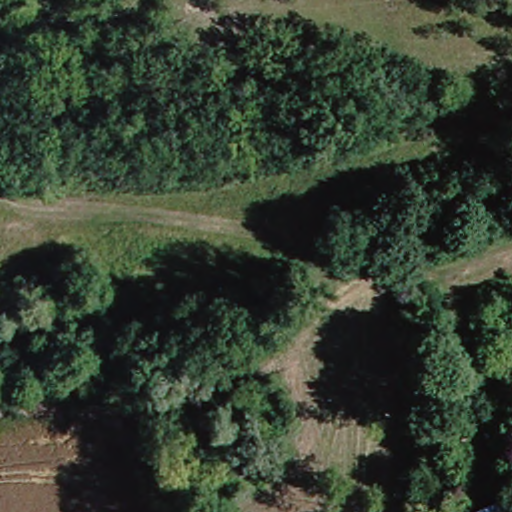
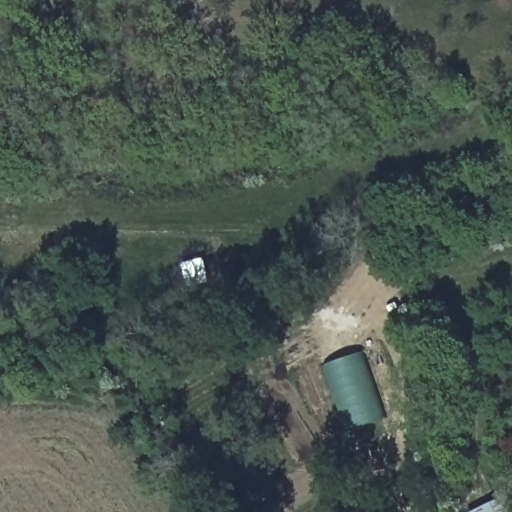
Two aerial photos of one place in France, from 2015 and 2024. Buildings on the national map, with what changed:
new [(361,353),(382,417),(347,430),(323,366),(361,353)]
unchanged [(512,491),(512,512),(476,512),(511,490),(512,491)]

